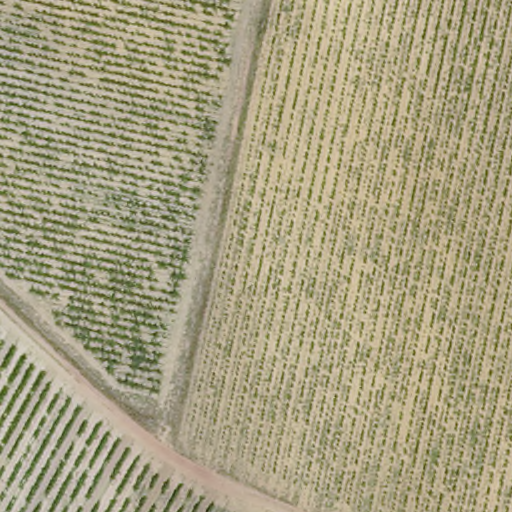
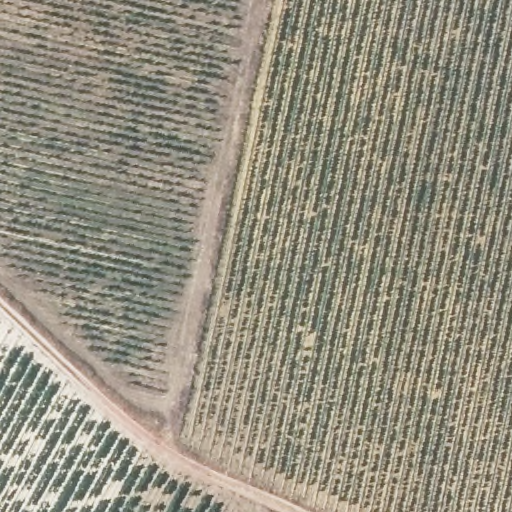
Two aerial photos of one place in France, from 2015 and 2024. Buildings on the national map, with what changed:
[]

